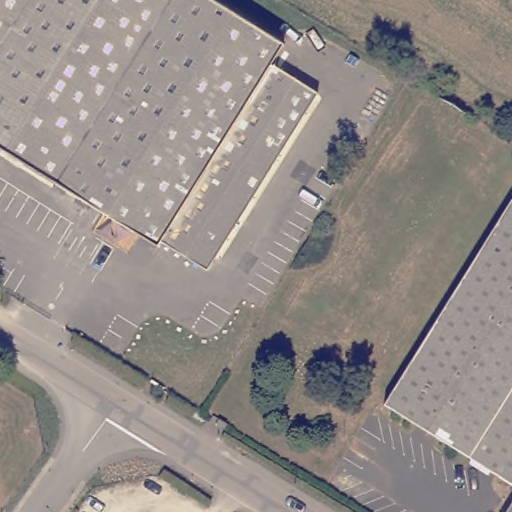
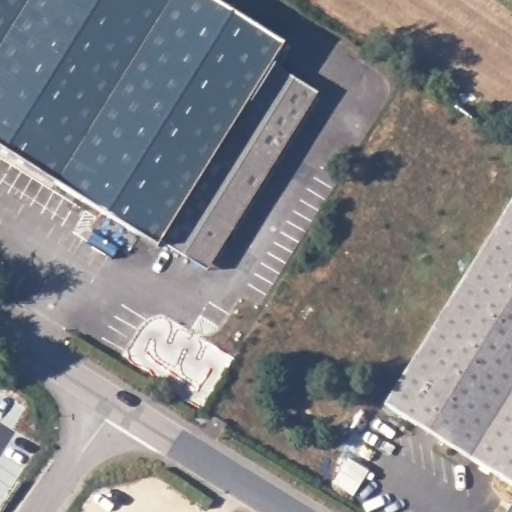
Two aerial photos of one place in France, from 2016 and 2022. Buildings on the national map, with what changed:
unchanged [(0,144),(0,0),(222,0),(288,40),(277,61),(322,89),(223,255),(214,270),(169,242),(166,246),(0,144)]
unchanged [(512,478),(390,401),(512,205),(512,478)]
unchanged [(206,421),(210,415),(222,424),(219,429),(206,421)]
unchanged [(512,509),(512,512),(510,512),(512,509)]

